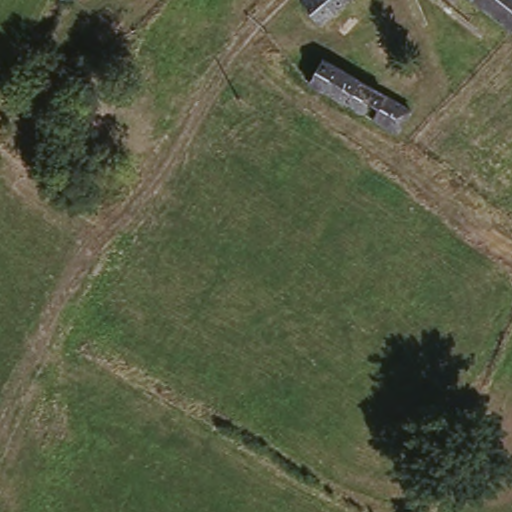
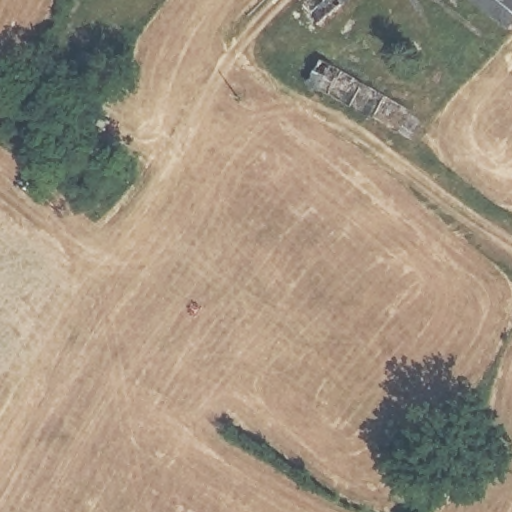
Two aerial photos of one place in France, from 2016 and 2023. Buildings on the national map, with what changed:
unchanged [(341,0),(319,19),(302,1),(303,0),(341,0)]
unchanged [(476,0),(512,0),(512,28),(507,24),(476,0)]
unchanged [(322,50),(410,101),(397,125),(309,74),(322,50)]

